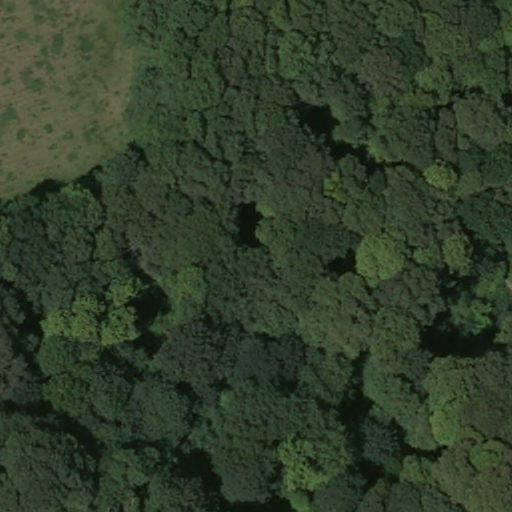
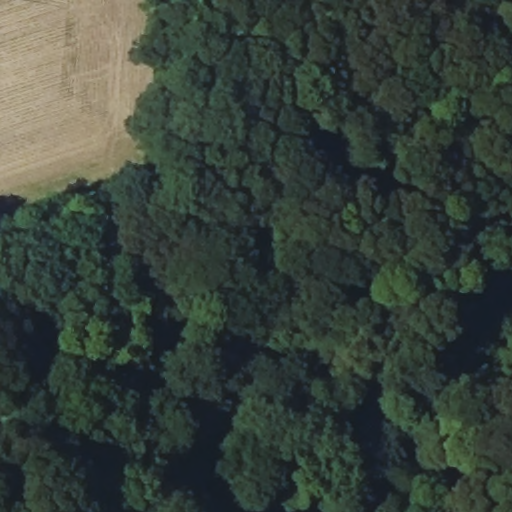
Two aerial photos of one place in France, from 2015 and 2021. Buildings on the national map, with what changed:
[]

